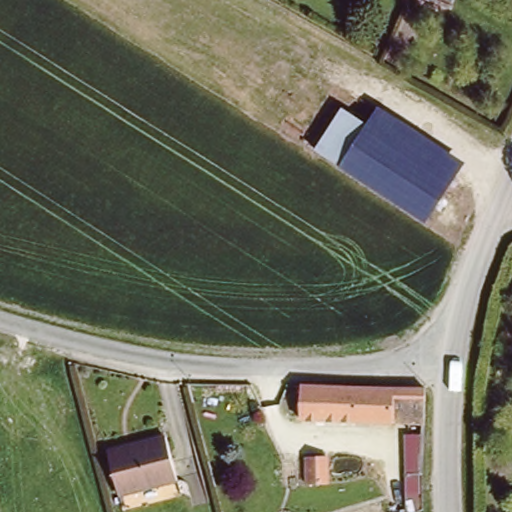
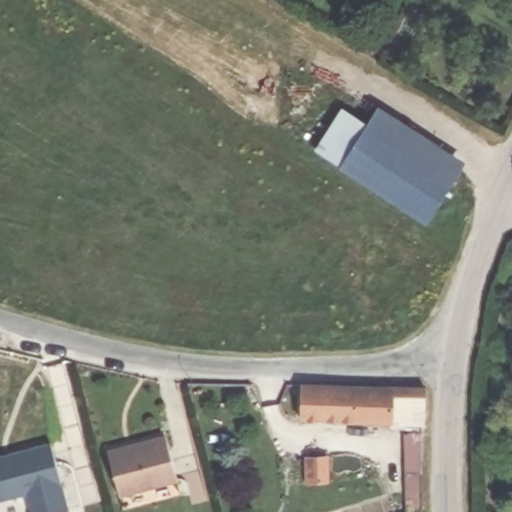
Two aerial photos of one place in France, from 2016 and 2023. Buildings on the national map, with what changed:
unchanged [(361,111),(334,156),(307,141),(331,95),(361,111)]
unchanged [(468,167),(429,220),(348,165),(350,162),(378,123),(390,106),(468,167)]
unchanged [(433,386),(431,423),(316,422),(309,422),(309,386),(433,386)]
unchanged [(423,436),(422,512),(406,512),(406,436),(423,436)]
unchanged [(174,482),(118,497),(107,455),(164,441),(174,482)]
new [(68,511),(63,512),(31,512),(26,494),(0,501),(0,456),(51,443),(68,511)]

